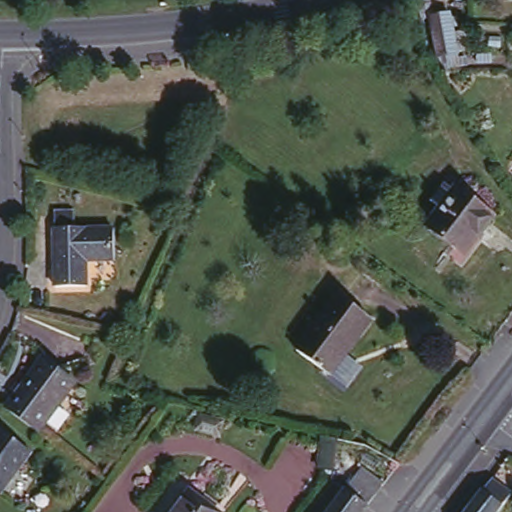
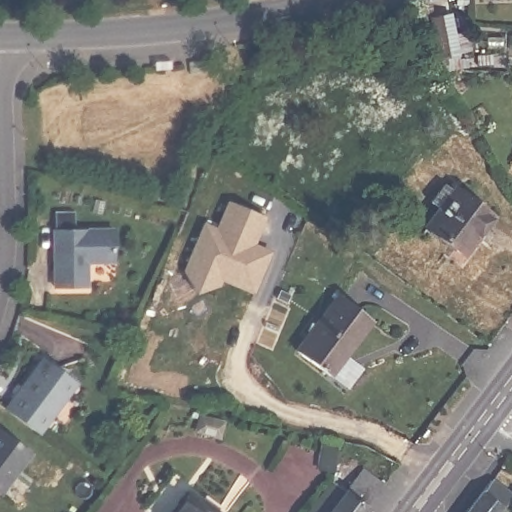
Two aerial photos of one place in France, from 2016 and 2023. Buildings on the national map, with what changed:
unchanged [(422,4),(421,0),(433,0),(433,1),(422,4)]
unchanged [(444,0),(450,0),(458,28),(476,24),(481,50),(463,54),(463,55),(453,57),(452,57),(440,45),(431,3),(444,0)]
unchanged [(464,249),(428,220),(458,181),(502,216),(490,232),(471,255),(464,249)]
new [(203,224),(216,230),(230,201),(260,216),(247,244),(267,254),(253,291),(222,278),(220,283),(182,268),(203,224)]
unchanged [(115,262),(86,261),(85,289),(55,288),(56,230),(58,230),(59,212),(76,214),(75,230),(116,230),(115,262)]
unchanged [(326,371),(302,352),(343,296),(376,321),(350,355),(334,376),(326,371)]
unchanged [(5,407),(42,358),(76,383),(39,432),(5,407)]
unchanged [(201,411),(227,416),(223,432),(209,429),(197,427),(201,411)]
unchanged [(0,493),(0,428),(32,451),(0,493)]
unchanged [(333,472),(318,470),(321,439),(337,443),(333,472)]
unchanged [(382,492),(383,494),(370,512),(314,512),(337,482),(347,488),(363,466),(387,485),(382,492)]
unchanged [(493,473),(512,488),(512,490),(496,512),(465,512),(493,473)]
unchanged [(187,490),(218,512),(170,512),(187,490)]

